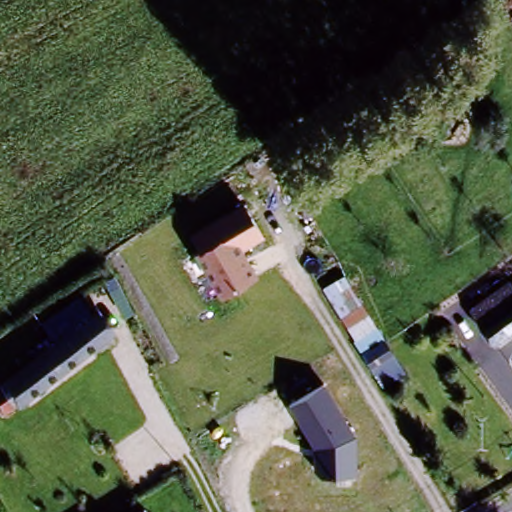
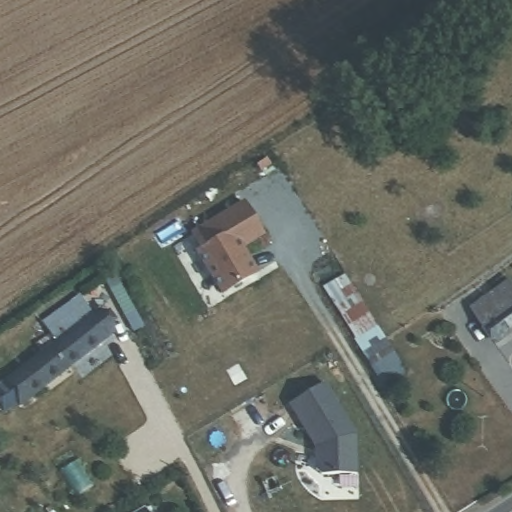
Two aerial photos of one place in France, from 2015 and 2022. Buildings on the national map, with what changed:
unchanged [(266,236),(244,247),(259,275),(218,298),(191,252),(196,249),(188,232),(243,200),(266,236)]
unchanged [(396,358),(374,371),(324,287),(344,274),(396,358)]
unchanged [(503,278),(512,289),(512,297),(476,325),(463,308),(503,278)]
unchanged [(14,407),(12,404),(0,413),(0,412),(0,377),(36,350),(25,336),(38,327),(36,324),(75,294),(88,312),(93,310),(110,334),(14,407)]
unchanged [(512,330),(492,346),(476,325),(512,297),(512,330)]
unchanged [(316,441),(291,403),(326,380),(357,435),(356,473),(316,476),(316,441)]

